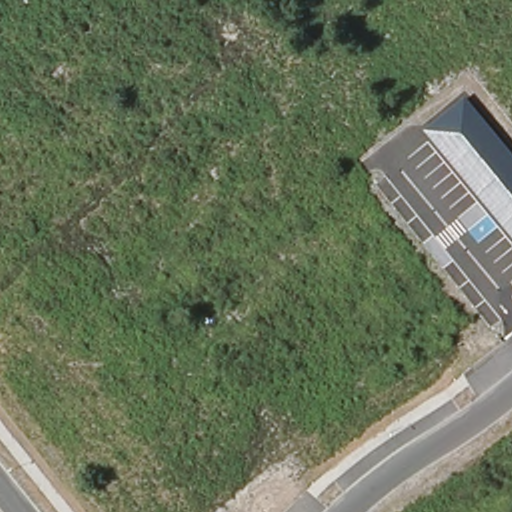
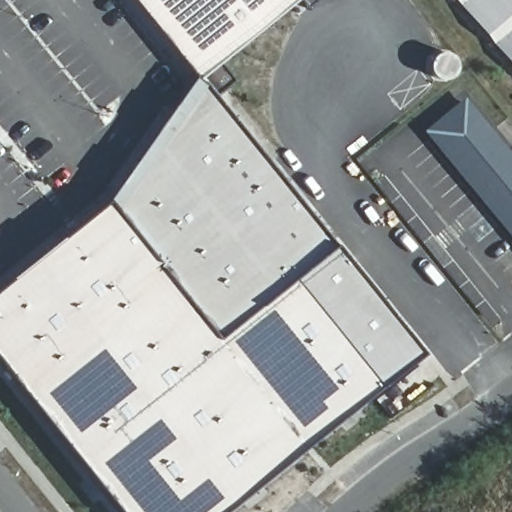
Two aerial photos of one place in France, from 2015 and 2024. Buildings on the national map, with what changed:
new [(142,0),(296,0),(222,59),(238,79),(218,96),(423,352),(224,512),(121,512),(0,361),(0,299),(115,206),(206,79),(142,0)]
new [(304,0),(320,0),(310,8),(304,0)]
new [(512,0),(512,67),(455,0),(512,0)]
new [(459,62),(459,66),(457,73),(454,76),(451,77),(447,79),(443,79),(436,76),(434,73),(431,66),(431,62),(433,58),(438,53),(445,51),(449,51),(452,53),(455,55),(458,58),(459,62)]
unchanged [(464,94),(512,153),(512,240),(421,130),(464,94)]

